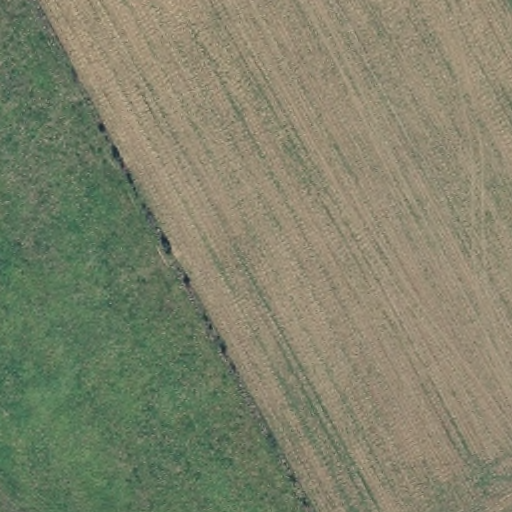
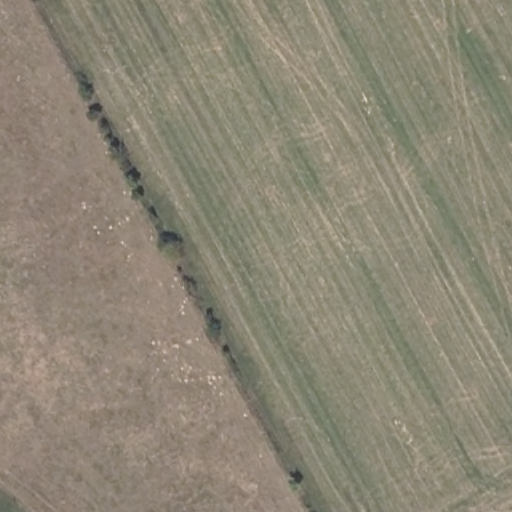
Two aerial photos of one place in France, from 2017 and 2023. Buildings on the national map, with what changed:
[]

